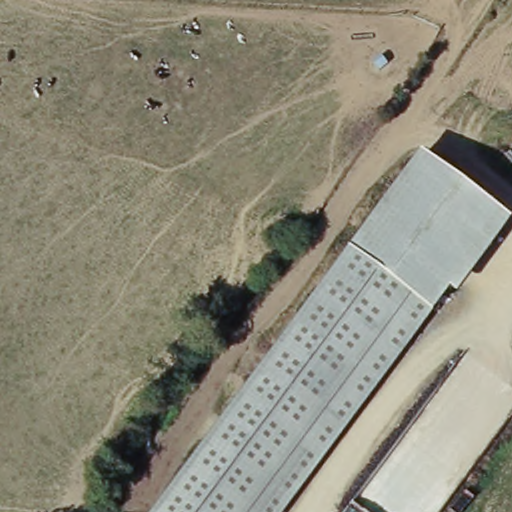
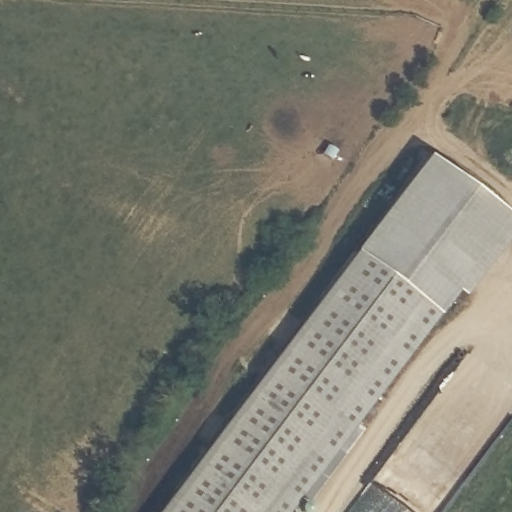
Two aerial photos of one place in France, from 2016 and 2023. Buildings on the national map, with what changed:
unchanged [(427,150),(512,218),(512,227),(463,294),(454,289),(291,512),(156,512),(427,150)]

